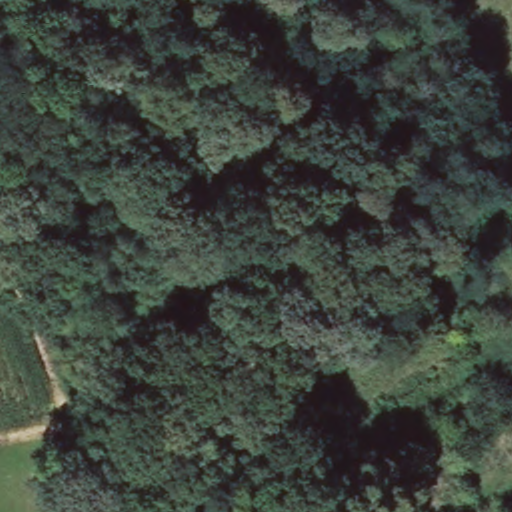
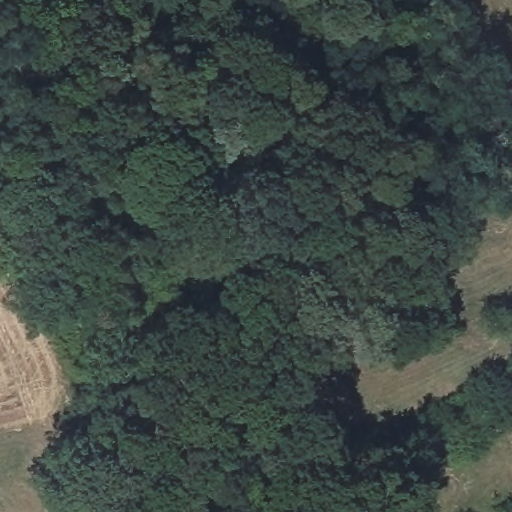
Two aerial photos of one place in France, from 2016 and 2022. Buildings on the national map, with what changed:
[]

